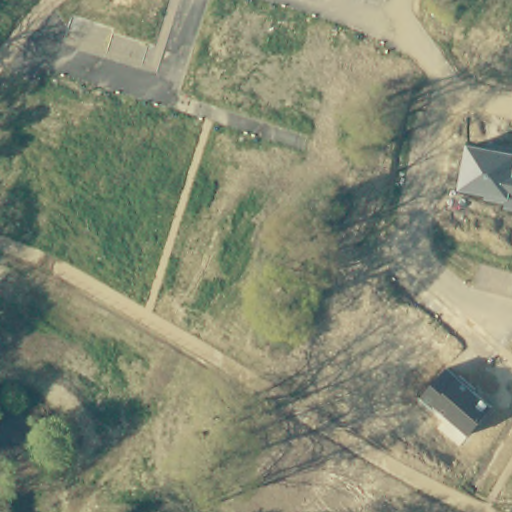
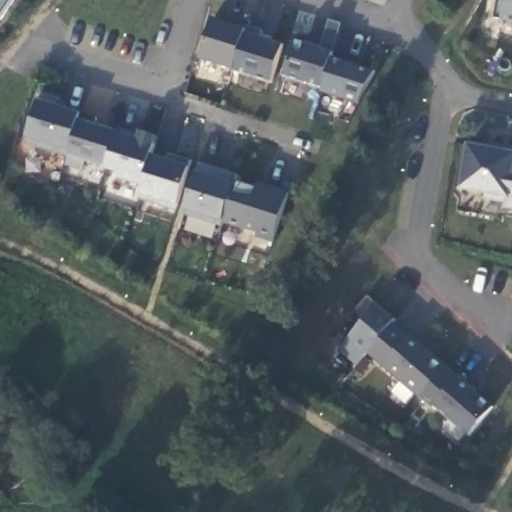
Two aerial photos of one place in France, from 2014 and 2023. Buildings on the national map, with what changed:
new [(504,21),(497,19),(500,0),(512,0),(512,22),(504,21)]
new [(213,18),(248,28),(250,26),(264,31),(263,37),(283,45),(271,83),(233,71),(233,70),(200,60),(213,18)]
new [(363,104),(320,92),(323,88),(283,76),(294,39),(323,48),(329,21),(342,25),(334,58),(376,71),(363,104)]
unchanged [(39,100),(44,101),(44,94),(61,99),(61,108),(81,115),(68,151),(26,138),(39,100)]
new [(157,136),(152,155),(168,159),(169,155),(189,161),(189,168),(178,206),(139,196),(142,186),(118,178),(119,173),(105,169),(118,133),(138,139),(140,131),(157,136)]
unchanged [(507,209),(507,204),(486,200),(487,195),(459,190),(467,143),(512,151),(512,210),(507,209)]
new [(233,185),(222,221),(226,222),(224,226),(182,214),(185,209),(194,171),(199,160),(238,171),(233,185)]
new [(258,189),(262,190),(264,186),(289,194),(273,243),(255,238),(258,233),(222,221),(233,185),(258,189)]
new [(367,353),(356,367),(338,351),(359,327),(351,319),(369,299),(379,307),(397,322),(447,368),(423,397),(367,353)]
unchanged [(423,397),(447,368),(494,407),(469,436),(423,397)]

